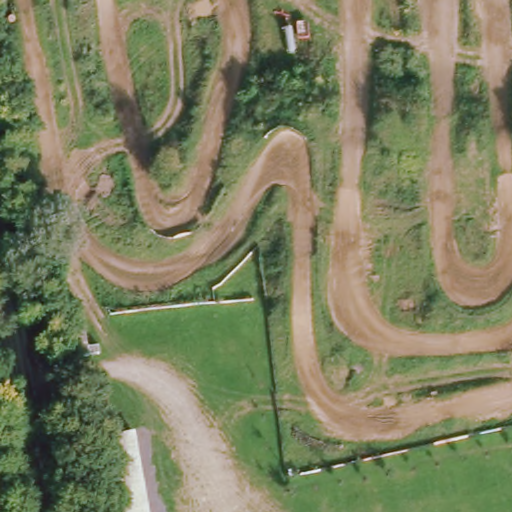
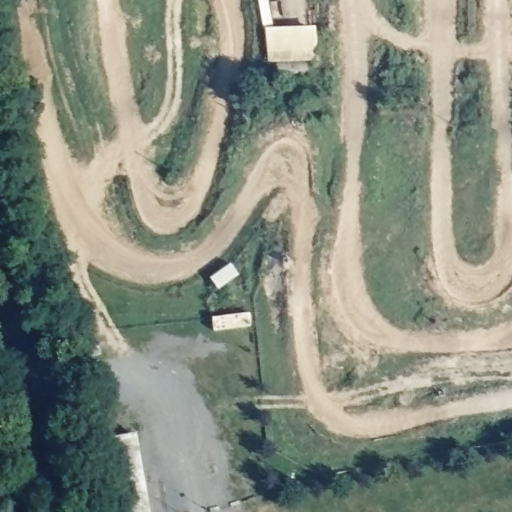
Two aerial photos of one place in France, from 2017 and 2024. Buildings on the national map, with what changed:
new [(267,64),(265,29),(316,26),(318,61),(267,64)]
unchanged [(135,434),(149,512),(120,512),(107,439),(135,434)]

